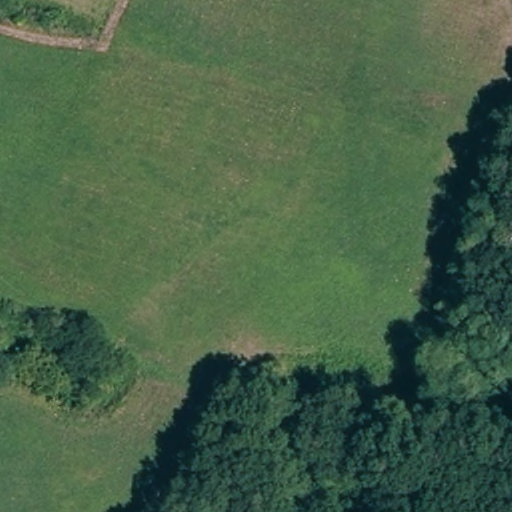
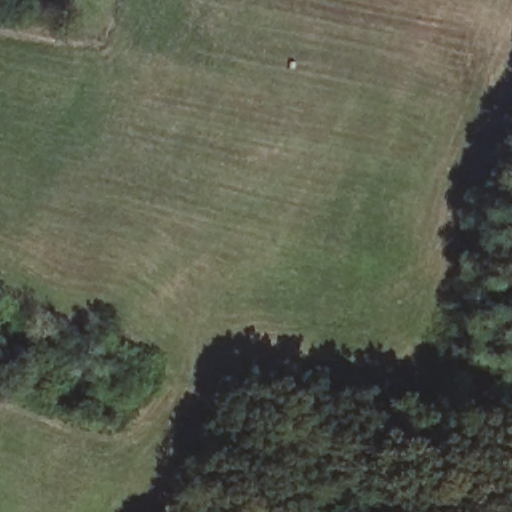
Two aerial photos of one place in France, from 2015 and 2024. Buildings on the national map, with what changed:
[]

